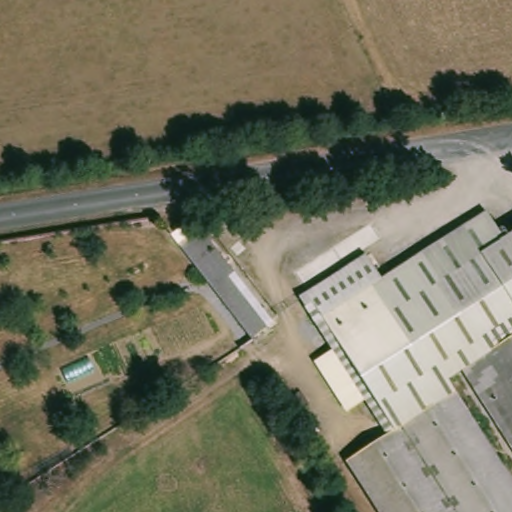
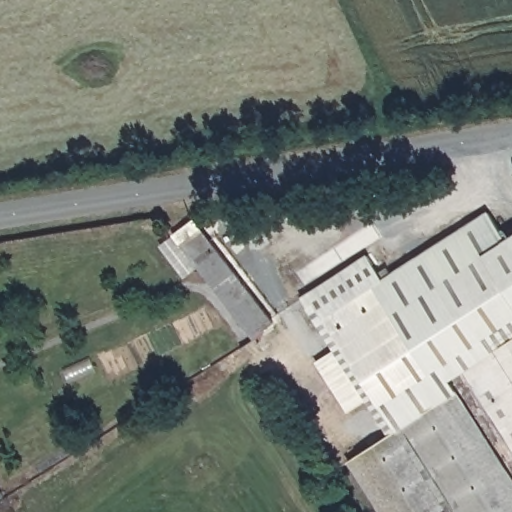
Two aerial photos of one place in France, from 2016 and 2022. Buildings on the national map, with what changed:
unchanged [(372,443),(389,433),(370,403),(302,295),(369,253),(385,278),(491,212),(508,239),(512,237),(512,458),(445,355),(444,355),(435,360),(413,375),(413,376),(502,512),(381,512),(348,458),(372,443)]
unchanged [(235,274),(274,323),(268,328),(255,338),(183,247),(182,246),(176,238),(174,235),(193,220),(201,231),(203,233),(235,274)]
unchanged [(456,392),(457,394),(512,479),(512,512),(502,512),(413,376),(413,375),(435,360),(456,392)]

